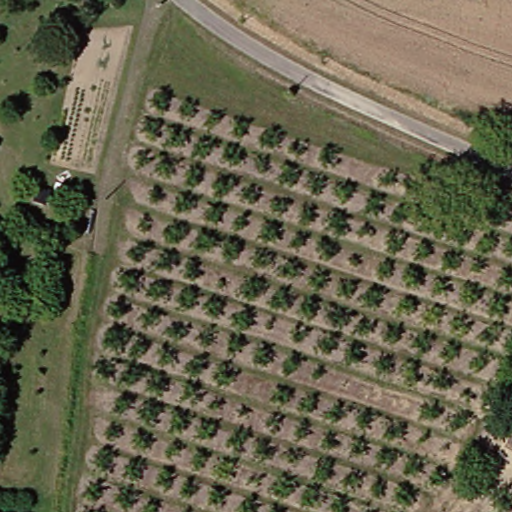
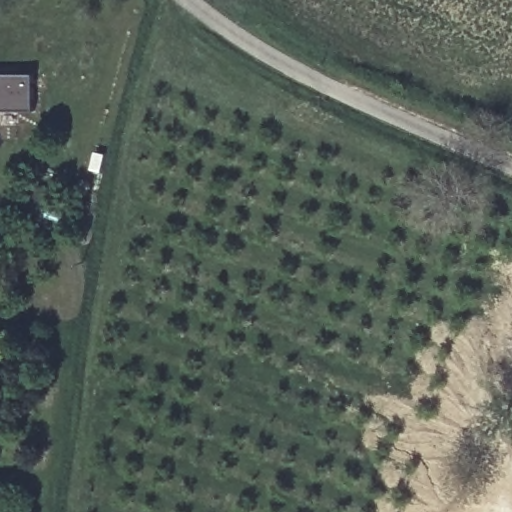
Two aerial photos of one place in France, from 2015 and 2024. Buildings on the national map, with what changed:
new [(35,75),(35,110),(0,110),(0,74),(35,75)]

